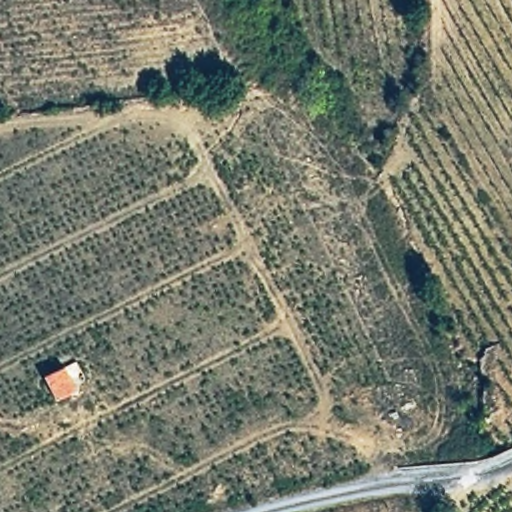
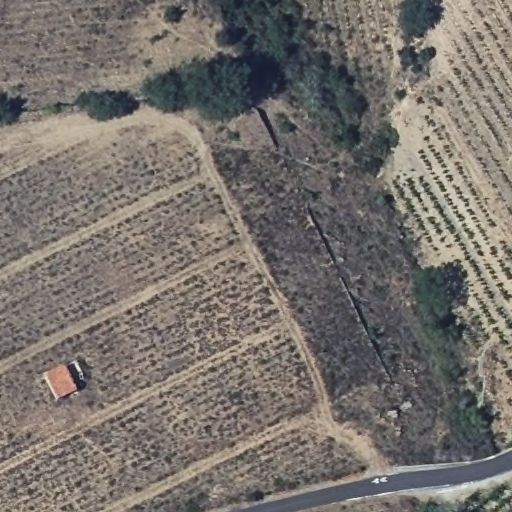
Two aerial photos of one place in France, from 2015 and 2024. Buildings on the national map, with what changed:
unchanged [(68,363),(77,382),(53,389),(46,373),(68,363)]

